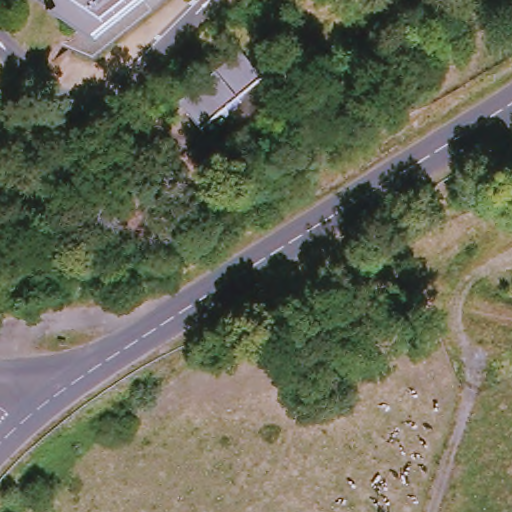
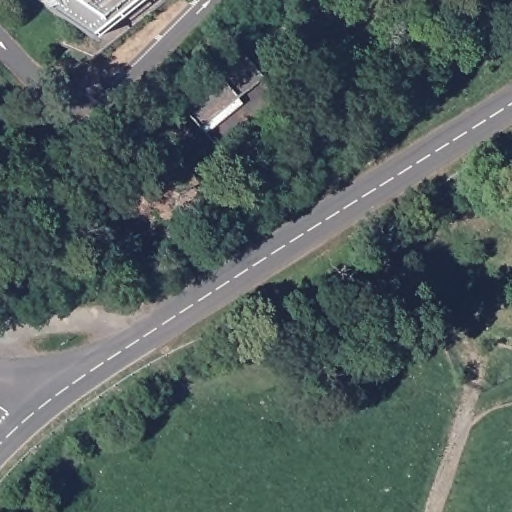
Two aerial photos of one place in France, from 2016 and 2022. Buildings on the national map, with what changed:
unchanged [(98,50),(60,35),(77,21),(52,1),(53,0),(161,0),(98,50)]
unchanged [(258,76),(278,101),(215,152),(195,127),(258,76)]

